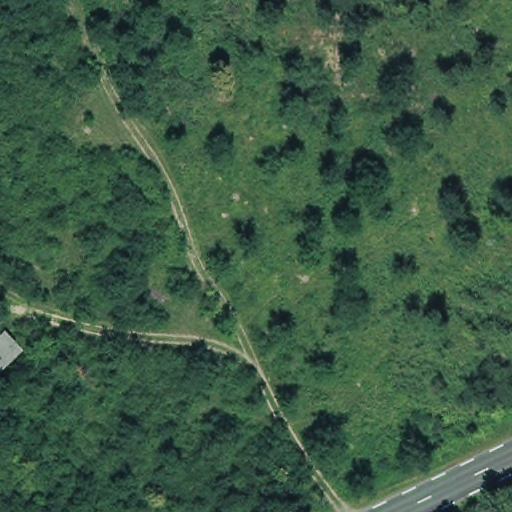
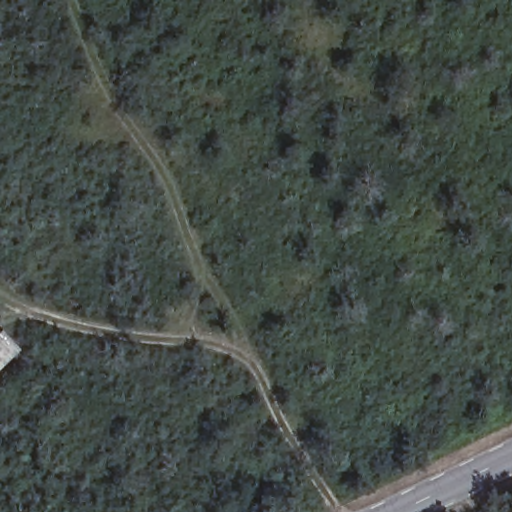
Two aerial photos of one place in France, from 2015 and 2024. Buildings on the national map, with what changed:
unchanged [(0,375),(0,333),(2,331),(23,352),(0,375)]

